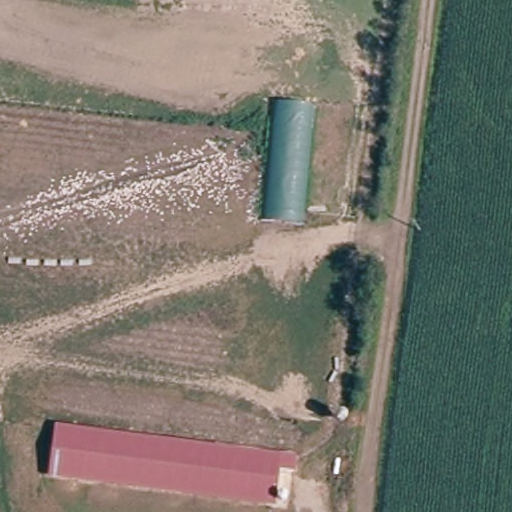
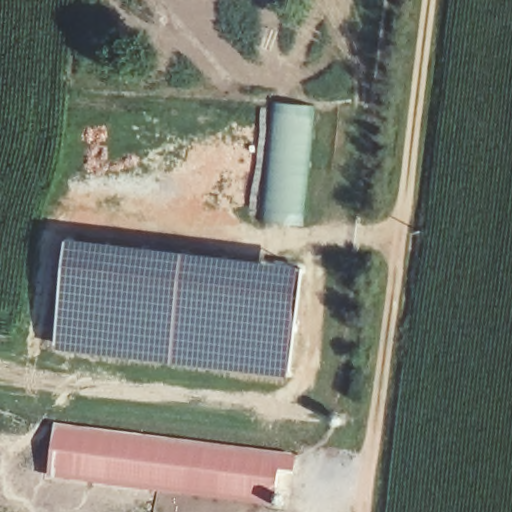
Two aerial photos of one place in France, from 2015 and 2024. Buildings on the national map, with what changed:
unchanged [(320,105),(308,225),(266,221),(278,101),(320,105)]
new [(70,238),(302,266),(289,377),(57,350),(70,238)]
unchanged [(300,459),(298,474),(283,472),(280,504),(55,475),(61,428),(300,459)]

